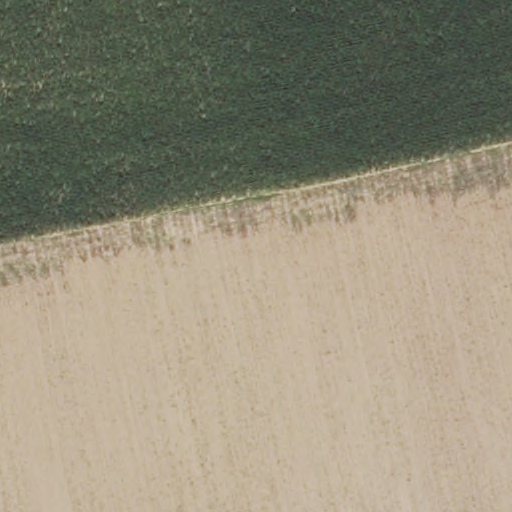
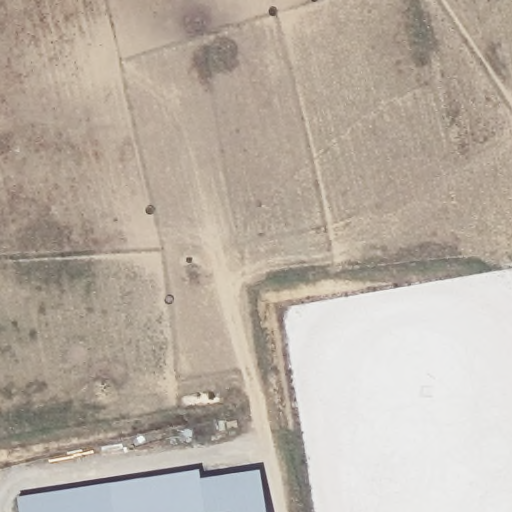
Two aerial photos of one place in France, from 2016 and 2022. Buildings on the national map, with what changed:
new [(20,512),(17,497),(199,472),(199,481),(258,472),(264,512),(20,512)]

